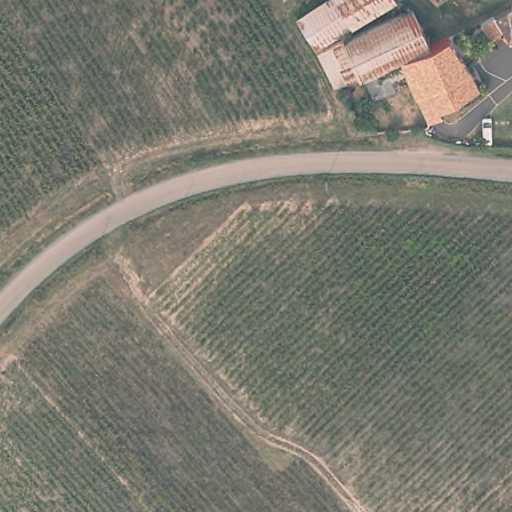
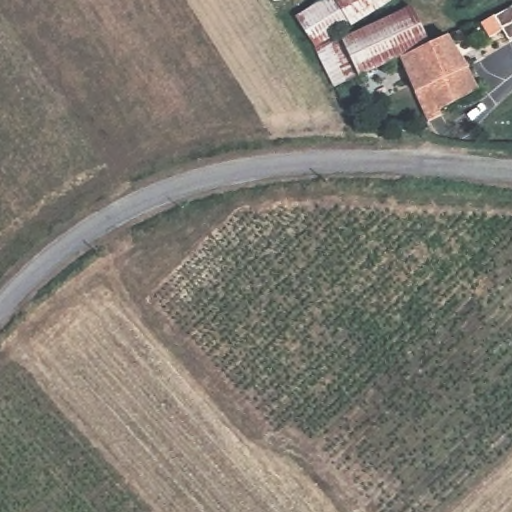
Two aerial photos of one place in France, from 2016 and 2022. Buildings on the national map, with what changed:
unchanged [(345,0),(350,8),(357,19),(345,27),(345,29),(316,42),(300,11),(320,0),(345,0)]
unchanged [(350,8),(345,0),(391,0),(367,14),(357,19),(350,8)]
unchanged [(363,28),(406,8),(418,3),(425,19),(435,39),(401,55),(385,63),(365,71),(356,53),(348,35),(363,28)]
unchanged [(356,53),(365,71),(336,84),(327,64),(317,44),(316,42),(345,29),(348,35),(356,53)]
unchanged [(435,39),(452,31),(473,62),(483,84),(445,104),(448,109),(432,118),(401,55),(435,39)]

